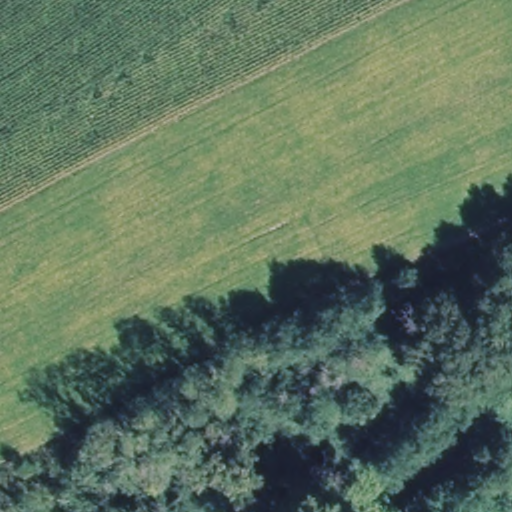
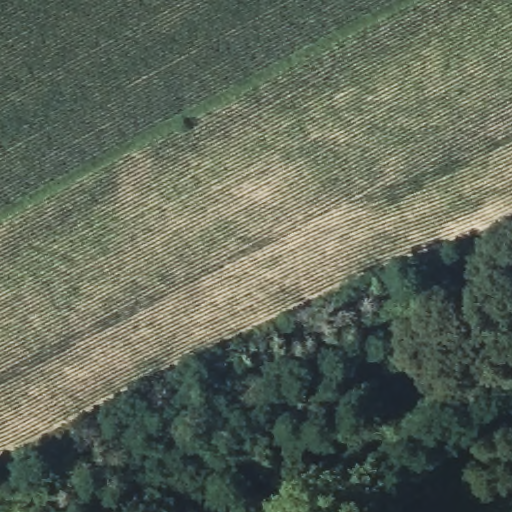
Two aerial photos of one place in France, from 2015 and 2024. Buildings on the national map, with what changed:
[]

